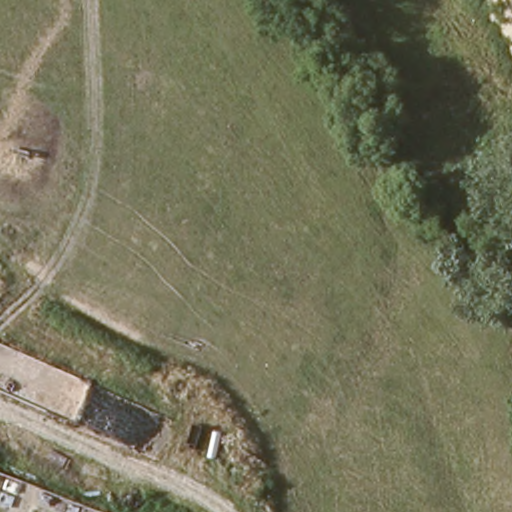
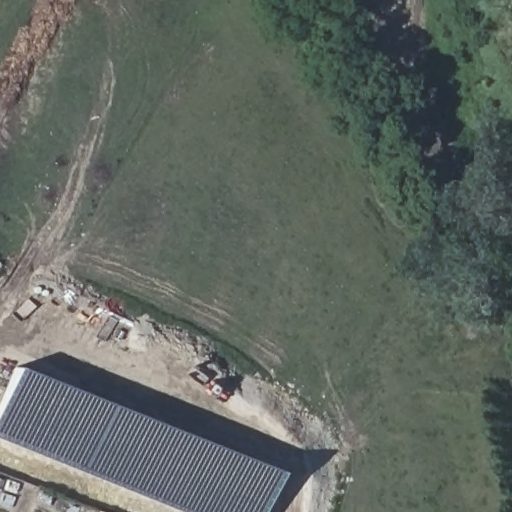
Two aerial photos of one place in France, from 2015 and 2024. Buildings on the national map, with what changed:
new [(15,367),(278,471),(261,512),(184,512),(0,438),(0,402),(15,367)]

